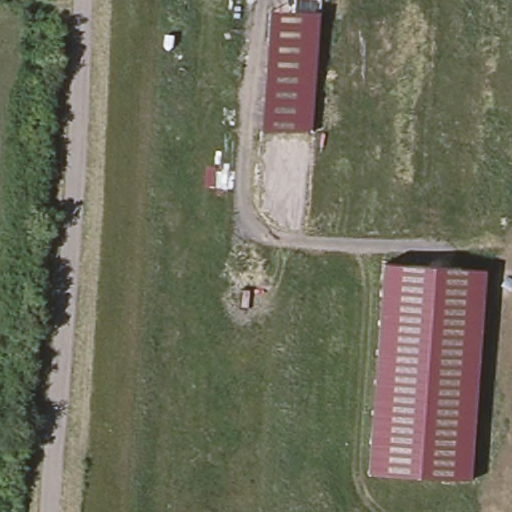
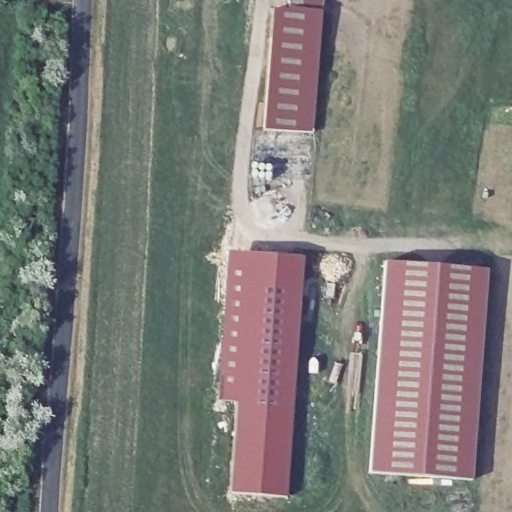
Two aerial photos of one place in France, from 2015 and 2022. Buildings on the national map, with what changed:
new [(290,11),(286,0),(320,0),(319,13),(290,11)]
unchanged [(271,10),(323,13),(317,132),(263,128),(271,10)]
new [(235,397),(222,396),(230,249),(302,253),(286,494),(230,491),(235,397)]
unchanged [(385,264),(488,272),(472,480),(371,473),(385,264)]

